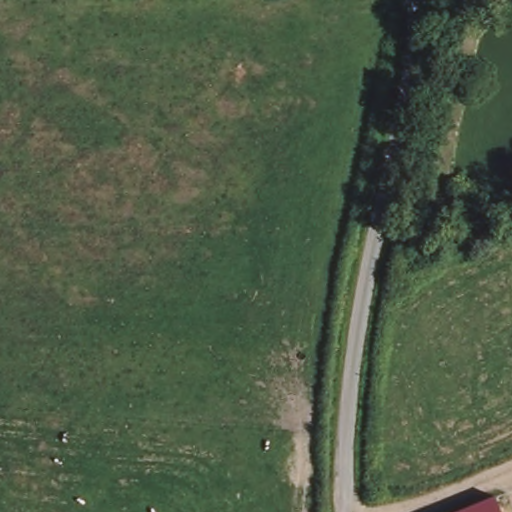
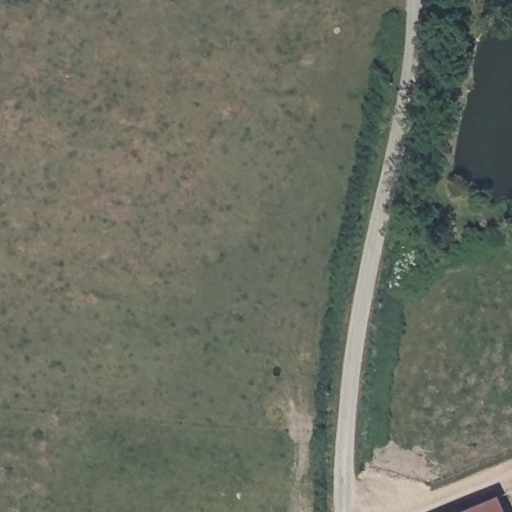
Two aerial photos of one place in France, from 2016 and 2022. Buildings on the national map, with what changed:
unchanged [(503,512),(458,512),(496,496),(503,512)]

